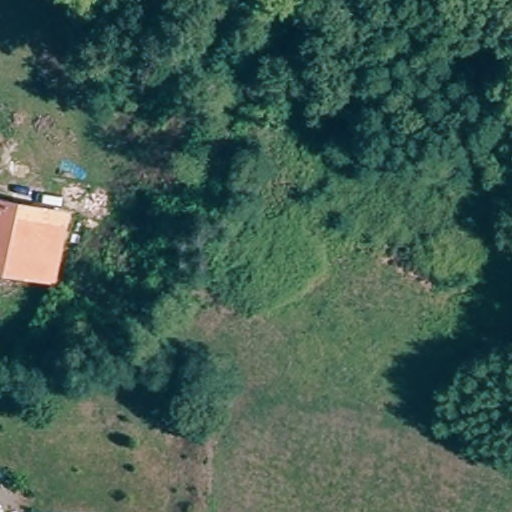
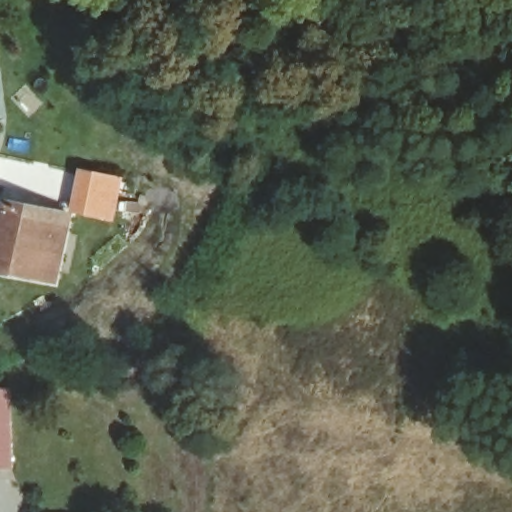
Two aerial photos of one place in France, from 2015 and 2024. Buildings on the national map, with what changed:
new [(119,175),(111,220),(70,206),(78,167),(119,175)]
unchanged [(50,280),(0,267),(0,196),(67,214),(65,225),(50,280)]
new [(11,387),(12,468),(0,469),(0,388),(11,387)]

